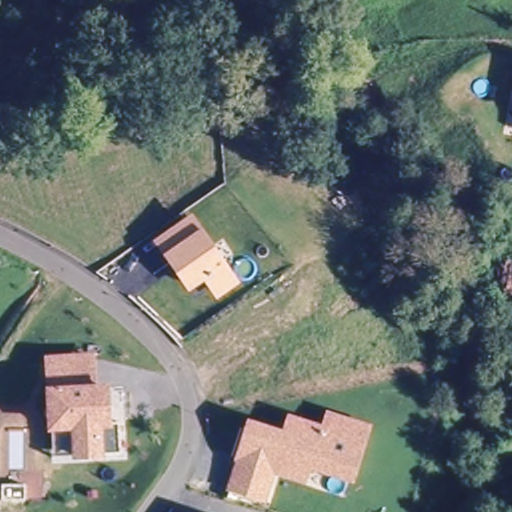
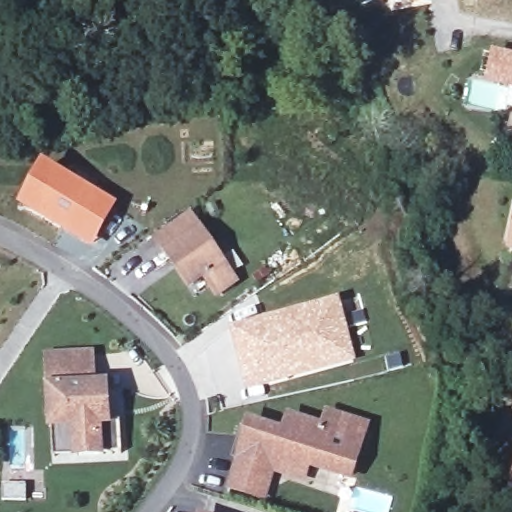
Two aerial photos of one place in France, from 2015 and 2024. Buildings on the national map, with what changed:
new [(378,2),(378,0),(387,0),(378,2)]
new [(412,2),(411,0),(421,0),(412,2)]
new [(42,163),(119,205),(94,249),(18,209),(42,163)]
new [(512,218),(512,256),(505,254),(512,218)]
unchanged [(217,295),(204,277),(189,287),(158,243),(190,221),(233,284),(217,295)]
new [(352,358),(249,387),(234,330),(337,300),(352,358)]
unchanged [(50,428),(47,360),(64,359),(65,390),(105,388),(106,423),(119,423),(120,454),(75,456),(52,457),(50,428)]
unchanged [(277,453),(273,467),(240,457),(244,443),(251,445),(257,425),(286,434),(291,417),(325,427),(329,413),(366,424),(351,475),(277,453)]
unchanged [(305,485),(274,474),(265,504),(229,493),(240,457),(273,467),(277,453),(313,464),(305,485)]
new [(512,469),(512,494),(507,492),(512,469)]

